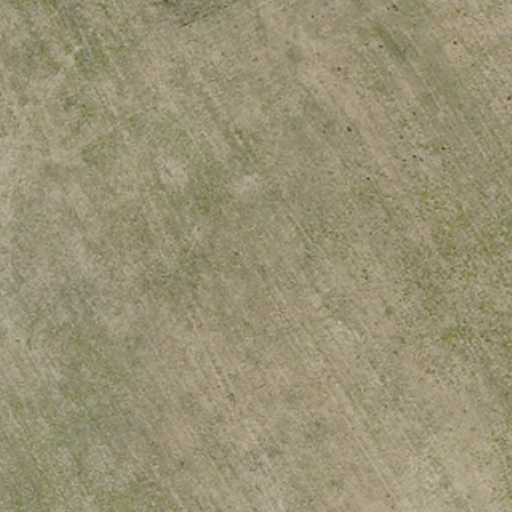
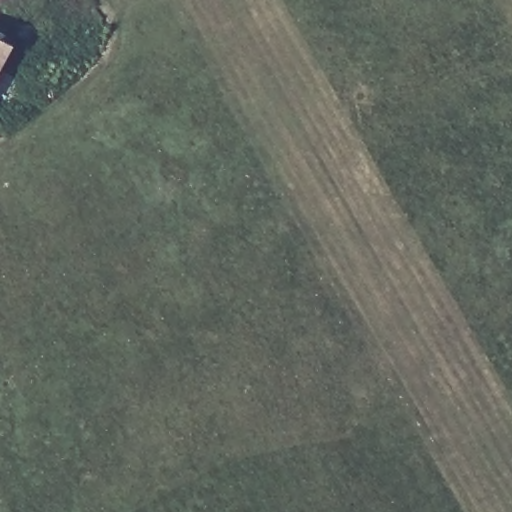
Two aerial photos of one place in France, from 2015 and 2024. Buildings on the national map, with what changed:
new [(0,72),(0,38),(14,45),(0,72)]

